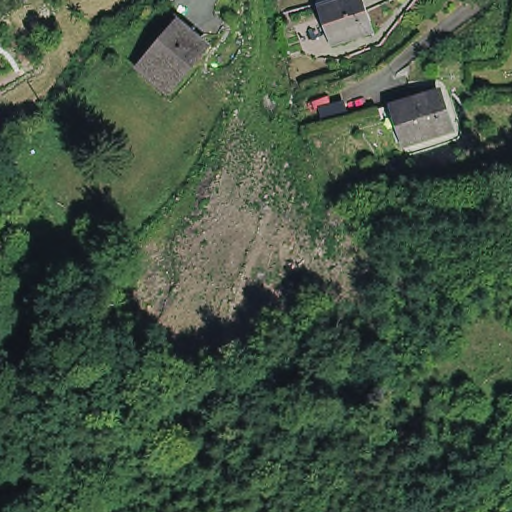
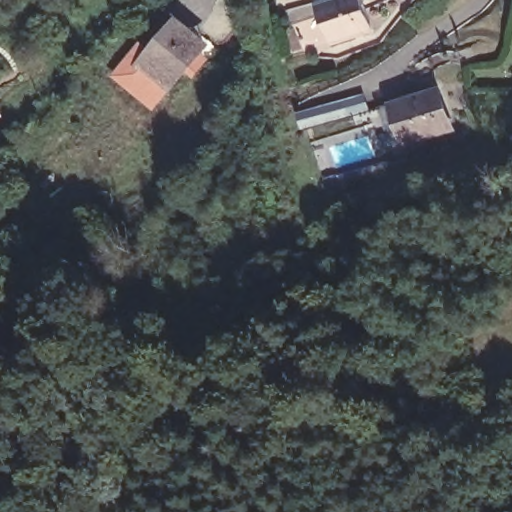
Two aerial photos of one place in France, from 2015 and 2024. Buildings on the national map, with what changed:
unchanged [(330,56),(317,15),(315,7),(338,0),(353,0),(354,4),(360,1),(372,42),(330,56)]
unchanged [(180,32),(205,53),(171,92),(147,71),(180,32)]
unchanged [(3,79),(0,80),(0,71),(3,79)]
unchanged [(384,106),(431,92),(444,134),(396,147),(384,106)]

